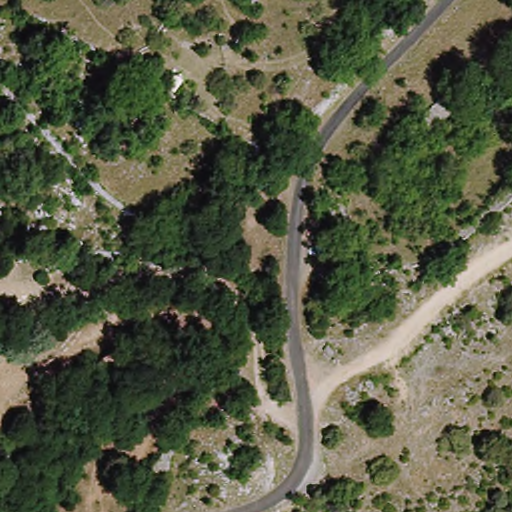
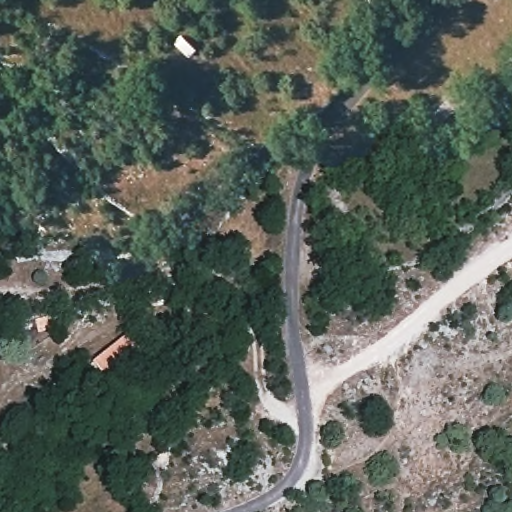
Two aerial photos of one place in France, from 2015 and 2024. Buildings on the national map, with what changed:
unchanged [(131,380),(103,410),(80,383),(108,355),(131,380)]

